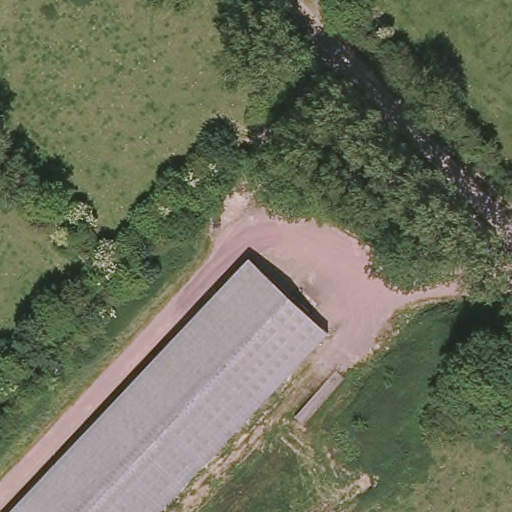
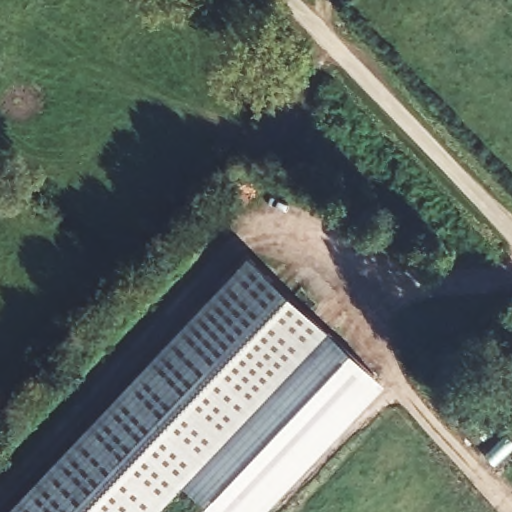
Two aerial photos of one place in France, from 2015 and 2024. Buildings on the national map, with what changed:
unchanged [(249,260),(328,334),(160,512),(11,512),(249,260)]
new [(387,387),(268,512),(210,512),(183,488),(328,334),(387,387)]

